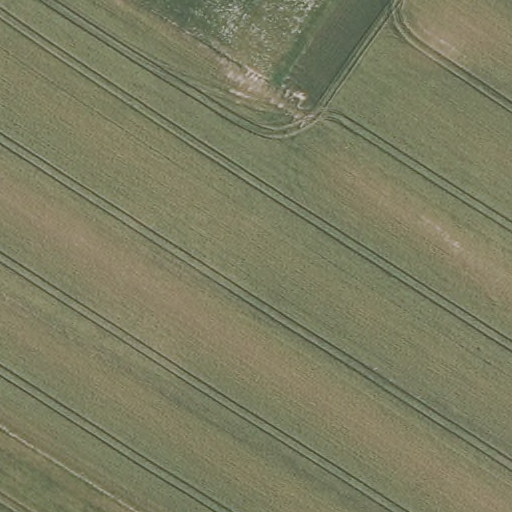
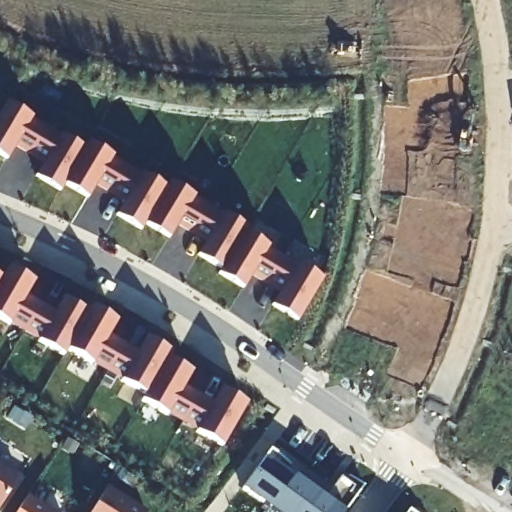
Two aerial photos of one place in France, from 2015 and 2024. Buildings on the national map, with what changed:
new [(10,160),(0,154),(0,118),(10,101),(35,116),(33,119),(62,136),(63,135),(86,148),(91,140),(115,154),(114,156),(143,174),(144,173),(168,188),(174,179),(199,194),(197,197),(226,214),(227,212),(250,226),(245,234),(270,248),(268,251),(297,267),(298,265),(323,281),(301,319),(276,304),(282,293),(253,275),(246,286),(222,272),(225,268),(201,253),(208,242),(181,226),(173,240),(146,224),(144,229),(120,214),(127,202),(100,185),(92,199),(66,184),(63,190),(38,176),(46,162),(18,146),(17,150),(10,160)]
new [(5,281),(11,269),(36,283),(29,296),(58,314),(66,300),(91,314),(95,308),(119,322),(112,335),(141,352),(149,339),(175,354),(170,362),(194,376),(186,389),(215,406),(223,393),(249,407),(225,449),(200,435),(200,432),(171,415),(170,417),(145,403),(148,397),(124,383),(125,381),(96,364),(95,367),(70,352),(66,358),(42,343),(43,342),(13,325),(12,327),(0,320),(0,278),(5,281)]
new [(362,338),(426,382),(408,409),(346,368),(362,338)]
new [(294,467),(290,473),(328,501),(343,480),(348,484),(352,478),(367,489),(350,512),(275,512),(245,490),(273,452),(294,467)]
new [(10,467),(0,483),(4,485),(0,492),(0,461),(10,467)]
new [(143,512),(90,512),(106,487),(143,512)]
new [(50,512),(16,512),(25,496),(50,512)]

